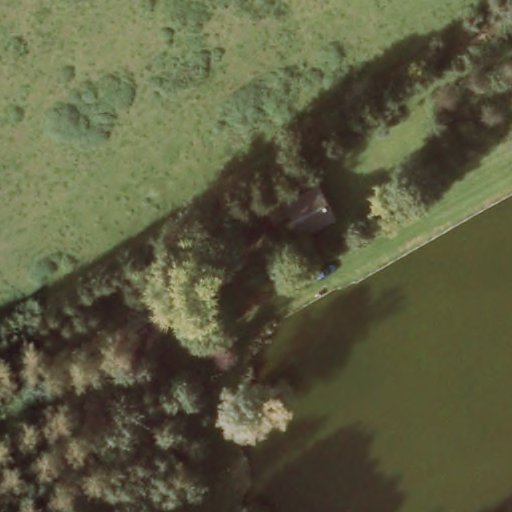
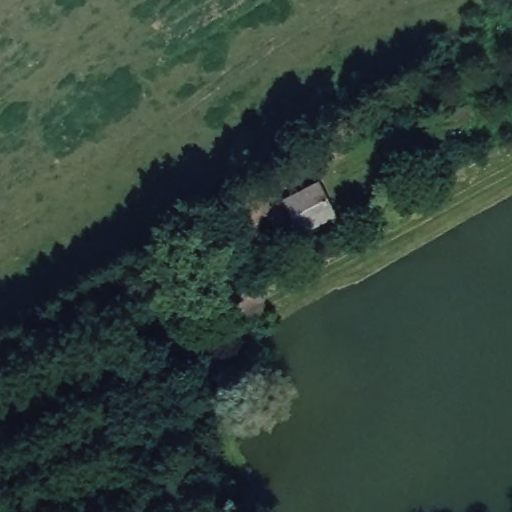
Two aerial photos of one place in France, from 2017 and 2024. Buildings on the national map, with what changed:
unchanged [(302,237),(282,205),(319,184),(338,218),(302,237)]

